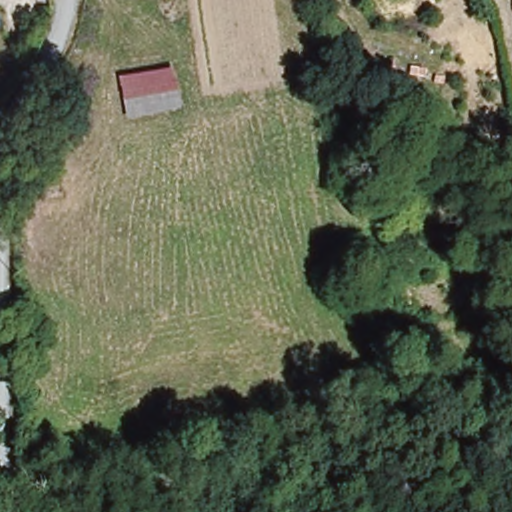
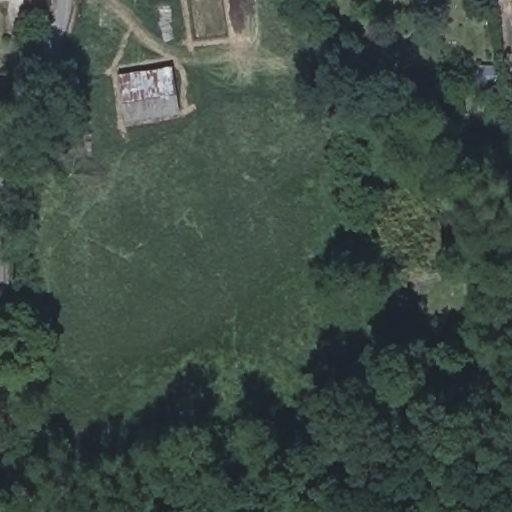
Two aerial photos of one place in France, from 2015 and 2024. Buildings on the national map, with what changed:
unchanged [(136,102),(130,73),(178,64),(182,94),(136,102)]

